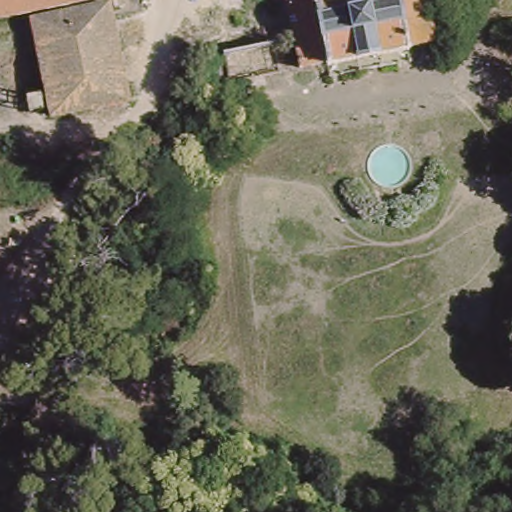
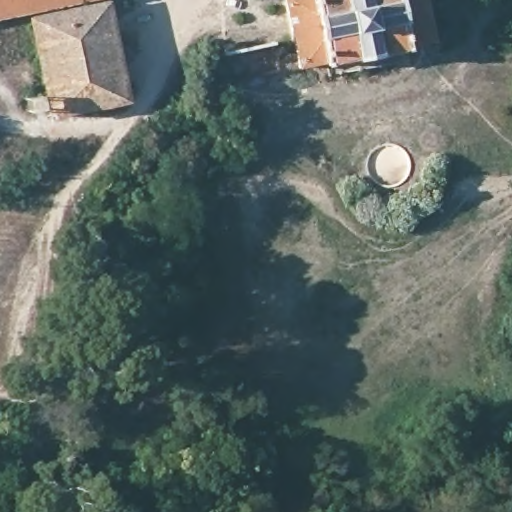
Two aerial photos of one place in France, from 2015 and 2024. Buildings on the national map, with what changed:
unchanged [(0,18),(0,0),(86,0),(0,18)]
unchanged [(279,66),(280,75),(230,84),(225,54),(277,46),(279,55),(300,52),(294,0),(431,0),(437,41),(402,46),(406,59),(337,72),(334,59),(279,66)]
unchanged [(49,117),(35,23),(112,8),(128,103),(49,117)]

